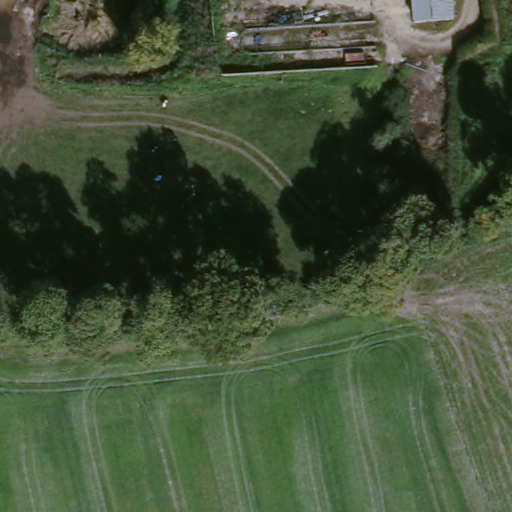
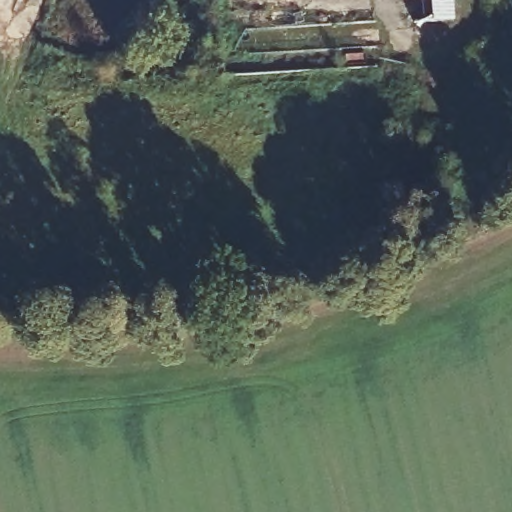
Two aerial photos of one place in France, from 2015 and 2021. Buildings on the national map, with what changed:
unchanged [(411,25),(409,0),(449,0),(450,22),(411,25)]

